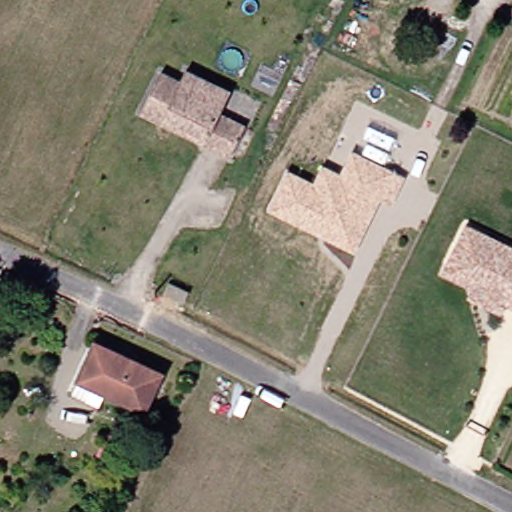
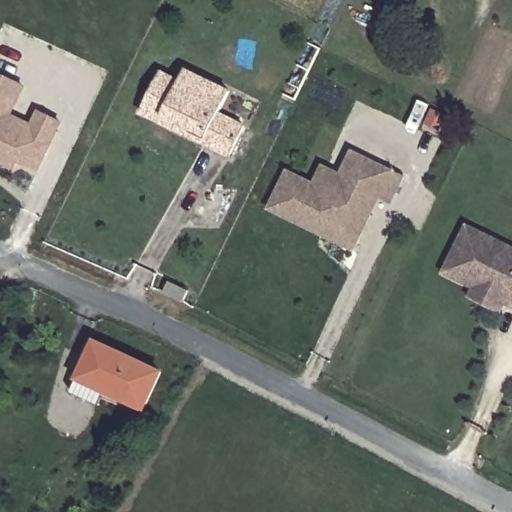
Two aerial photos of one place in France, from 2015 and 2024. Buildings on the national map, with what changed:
unchanged [(179,81),(185,70),(229,91),(218,114),(243,126),(229,155),(202,142),(206,135),(177,121),(174,129),(140,112),(160,72),(179,81)]
new [(27,86),(15,116),(32,123),(37,111),(63,122),(40,171),(19,164),(17,170),(0,163),(0,75),(27,86)]
unchanged [(268,210),(286,170),(314,182),(322,165),(340,173),(352,149),(405,176),(392,204),(381,198),(354,252),(268,210)]
unchanged [(501,313),(468,297),(472,288),(441,273),(446,263),(465,225),(512,247),(512,308),(505,304),(501,313)]
unchanged [(170,281),(189,291),(183,302),(164,292),(170,281)]
unchanged [(156,372),(140,408),(101,390),(94,405),(68,392),(75,377),(91,342),(156,372)]

